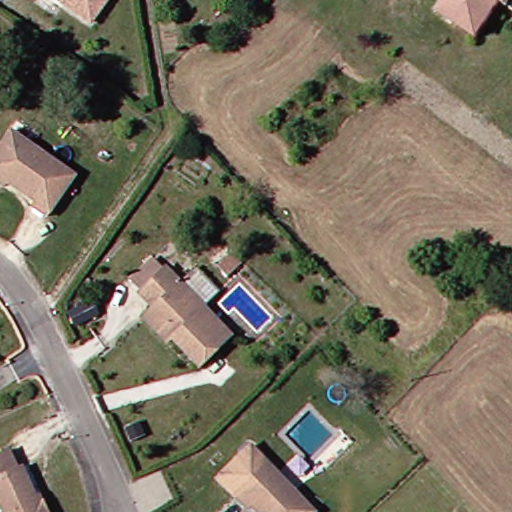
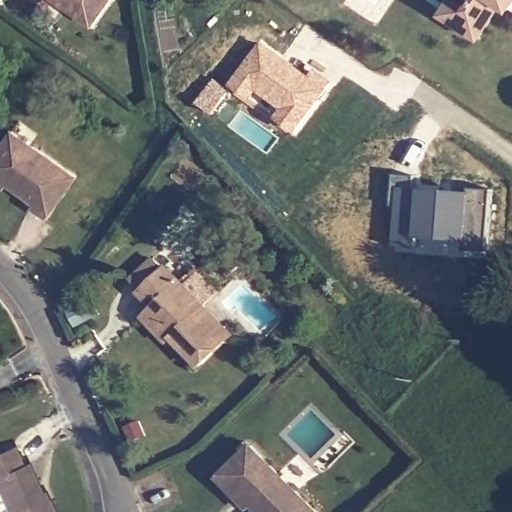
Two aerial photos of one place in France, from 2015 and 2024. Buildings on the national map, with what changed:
unchanged [(87,25),(52,0),(105,0),(87,25)]
unchanged [(502,9),(494,4),(471,40),(448,24),(430,12),(438,0),(507,0),(502,9)]
new [(296,134),(275,119),(282,110),(258,92),(251,102),(230,86),(263,41),(310,77),(316,68),(335,82),(296,134)]
new [(214,116),(198,103),(217,79),(233,91),(214,116)]
unchanged [(1,192),(0,191),(0,149),(9,136),(73,180),(44,221),(30,211),(32,207),(4,187),(1,192)]
new [(487,252),(466,250),(467,242),(418,239),(417,248),(395,247),(397,206),(392,206),(395,175),(414,176),(418,191),(470,193),(470,189),(492,191),(487,252)]
unchanged [(213,265),(221,257),(226,252),(237,262),(232,267),(224,276),(213,265)]
unchanged [(143,321),(150,314),(153,312),(139,297),(141,295),(132,285),(153,265),(162,274),(165,271),(233,338),(201,370),(173,342),(168,347),(143,321)]
unchanged [(251,442),(318,508),(314,512),(262,512),(253,503),(250,507),(218,476),(251,442)]
unchanged [(9,471),(13,469),(31,506),(34,505),(38,512),(0,512),(0,452),(9,471)]

